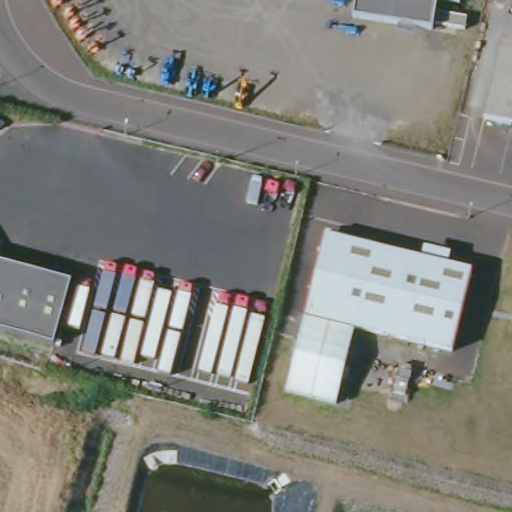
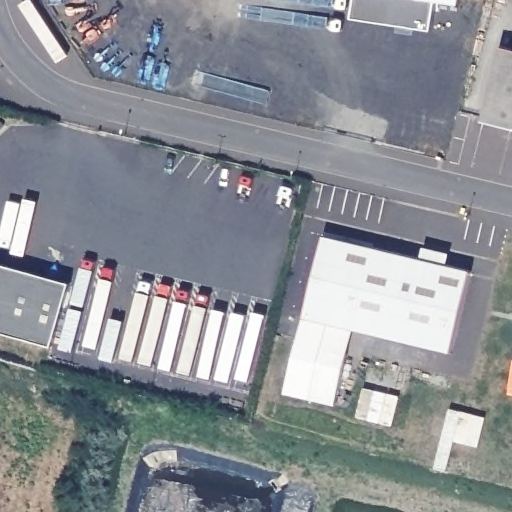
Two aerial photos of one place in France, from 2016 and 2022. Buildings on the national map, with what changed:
unchanged [(350,0),(432,0),(428,26),(348,15),(350,0)]
unchanged [(502,47),(512,50),(512,127),(484,121),(502,47)]
unchanged [(320,236),(467,272),(448,352),(349,328),(330,403),(282,391),(300,316),(320,236)]
unchanged [(53,341),(0,327),(0,258),(70,278),(53,341)]

